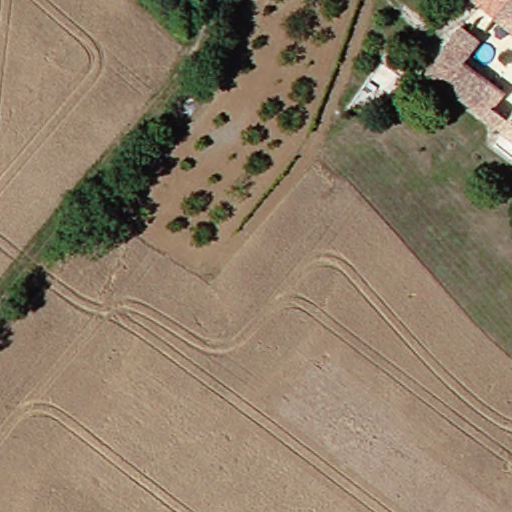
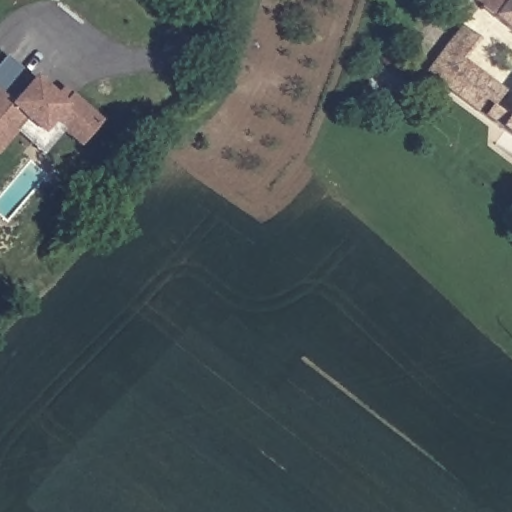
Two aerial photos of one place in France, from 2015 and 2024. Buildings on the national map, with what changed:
unchanged [(494,24),(500,17),(477,0),(512,0),(512,36),(494,24)]
unchanged [(418,81),(447,42),(467,55),(455,76),(497,107),(491,119),(503,128),(512,116),(512,143),(418,81)]
new [(0,145),(0,56),(48,99),(57,89),(66,96),(97,123),(76,147),(59,133),(38,158),(10,135),(0,145)]

